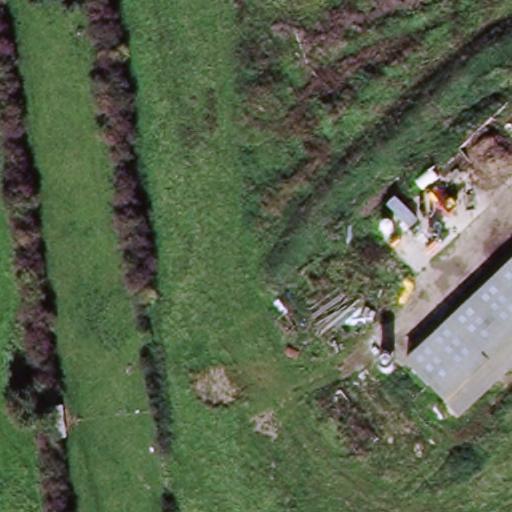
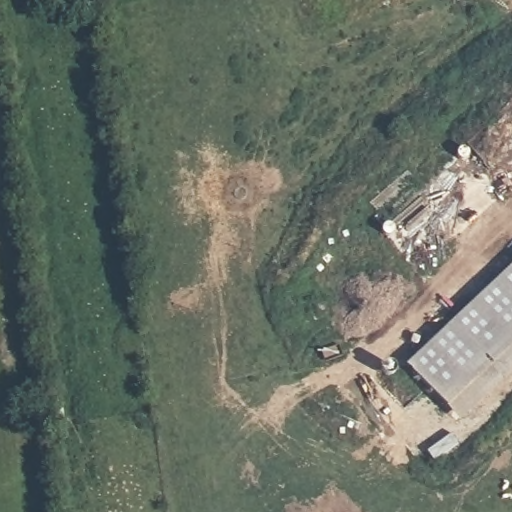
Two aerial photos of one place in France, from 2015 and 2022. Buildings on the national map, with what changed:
unchanged [(404,363),(512,261),(512,365),(456,419),(404,363)]

